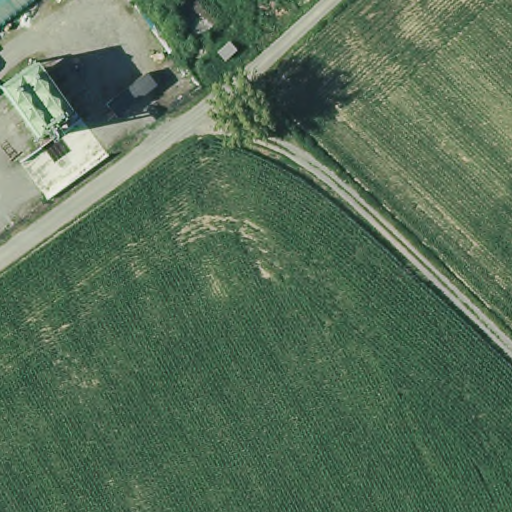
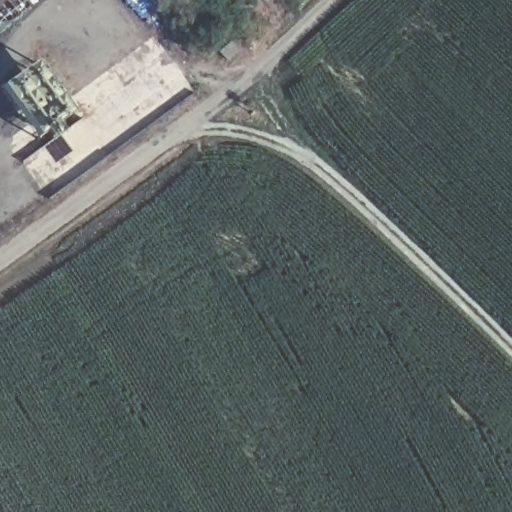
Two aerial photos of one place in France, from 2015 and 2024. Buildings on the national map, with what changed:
unchanged [(239,41),(228,51),(221,43),(232,34),(239,41)]
unchanged [(40,62),(80,112),(45,141),(4,91),(40,62)]

